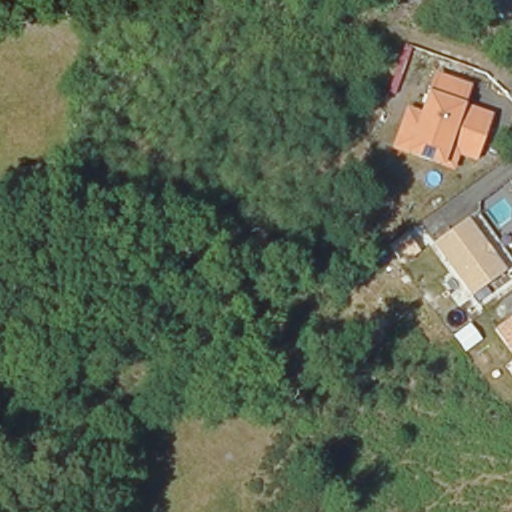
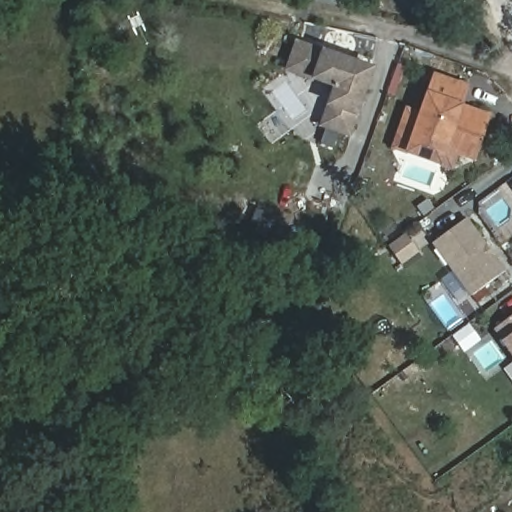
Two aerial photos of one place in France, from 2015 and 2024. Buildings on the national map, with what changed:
new [(352,138),(321,126),(333,90),(287,72),(299,42),(376,69),(352,138)]
unchanged [(477,162),(460,155),(453,172),(391,150),(407,107),(422,111),(429,92),(436,73),(472,86),(466,104),(494,114),(477,162)]
unchanged [(472,296),(433,243),(470,218),(508,270),(472,296)]
unchanged [(495,331),(512,318),(512,354),(495,331)]

